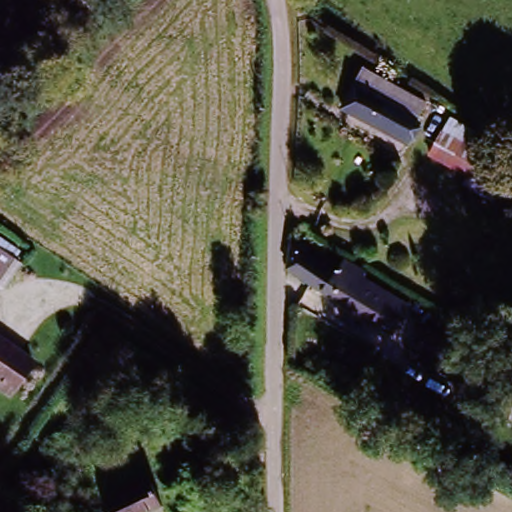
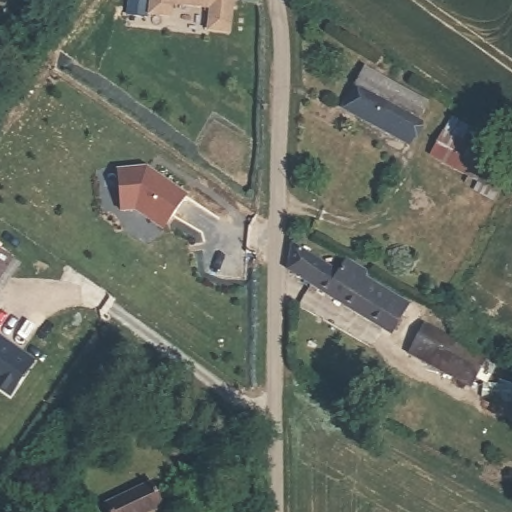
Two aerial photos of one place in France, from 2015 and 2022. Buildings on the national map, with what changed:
new [(207,30),(208,7),(176,4),(174,15),(150,13),(151,0),(233,0),(229,32),(207,30)]
unchanged [(432,109),(426,121),(356,83),(363,71),(432,109)]
unchanged [(412,148),(341,108),(356,83),(426,121),(412,148)]
unchanged [(512,164),(512,196),(509,204),(434,161),(448,128),(512,164)]
new [(152,173),(186,195),(163,232),(133,210),(119,209),(124,169),(152,173)]
unchanged [(10,256),(0,272),(0,249),(10,256)]
unchanged [(293,274),(309,251),(390,304),(374,328),(293,274)]
unchanged [(29,360),(4,398),(0,395),(0,340),(29,360)]
unchanged [(472,366),(463,383),(454,378),(451,383),(423,365),(435,346),(472,366)]
unchanged [(169,511),(166,512),(100,512),(98,508),(154,481),(169,511)]

